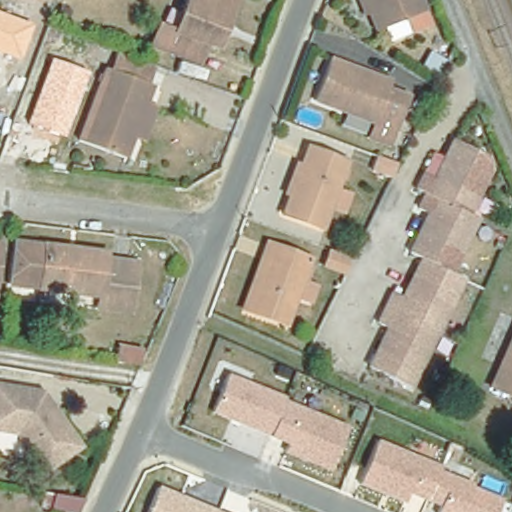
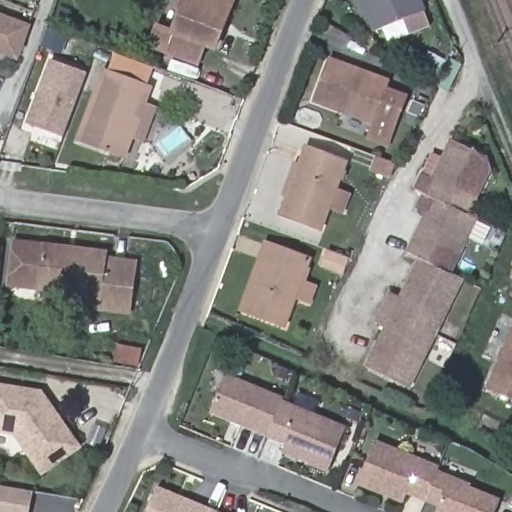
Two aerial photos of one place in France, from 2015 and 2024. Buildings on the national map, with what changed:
unchanged [(198,63),(151,46),(159,24),(175,30),(187,0),(234,0),(222,29),(215,50),(205,46),(198,63)]
unchanged [(422,0),(426,11),(377,32),(369,12),(365,13),(360,0),(422,0)]
unchanged [(69,10),(63,25),(56,22),(61,7),(69,10)]
unchanged [(0,53),(0,14),(31,25),(18,59),(0,53)]
unchanged [(145,143),(133,138),(125,157),(79,140),(106,68),(108,69),(114,53),(157,70),(151,85),(152,86),(146,102),(158,106),(145,143)]
unchanged [(437,78),(423,71),(432,53),(445,60),(437,78)]
unchanged [(64,137),(25,123),(50,58),(86,71),(64,137)]
unchanged [(395,83),(392,92),(411,99),(393,145),(374,137),(379,123),(319,101),(335,60),(395,83)]
unchanged [(487,156),(461,210),(429,196),(409,187),(417,171),(427,176),(446,137),(487,156)]
unchanged [(330,206),(321,229),(283,214),(290,195),(287,194),(298,165),(301,166),(308,148),(347,162),(336,191),(348,195),(342,210),(330,206)]
unchanged [(377,157),(396,164),(391,178),(372,171),(377,157)]
unchanged [(480,219),(454,274),(425,261),(413,255),(432,216),(421,211),(429,196),(461,210),(480,219)]
unchanged [(40,290),(7,286),(9,272),(12,242),(45,246),(40,290)]
unchanged [(306,303),(291,298),(281,326),(242,311),(239,310),(264,244),(267,245),(306,260),(298,282),(312,287),(306,303)]
unchanged [(106,253),(105,258),(136,262),(130,312),(97,308),(99,297),(40,290),(45,246),(106,253)]
unchanged [(330,251),(350,259),(345,274),(324,267),(330,251)]
unchanged [(466,280),(440,335),(389,311),(396,295),(406,301),(425,261),(454,274),(466,280)]
unchanged [(413,390),(373,371),(392,331),(381,326),(389,311),(440,335),(413,390)]
unchanged [(512,340),(512,397),(491,388),(512,340)]
unchanged [(113,360),(116,345),(142,350),(139,365),(113,360)]
unchanged [(327,475),(288,457),(276,439),(211,414),(228,374),(283,396),(281,401),(349,427),(327,475)]
unchanged [(2,389),(51,398),(88,451),(53,476),(26,437),(0,433),(0,405),(2,389)]
unchanged [(497,512),(438,512),(439,508),(407,496),(404,505),(357,485),(376,439),(440,465),(438,470),(472,483),(469,488),(501,500),(497,512)]
new [(34,492),(30,512),(0,512),(0,486),(34,492)]
unchanged [(159,487),(219,512),(148,512),(159,487)]
unchanged [(79,512),(56,512),(51,511),(55,496),(83,500),(79,512)]

